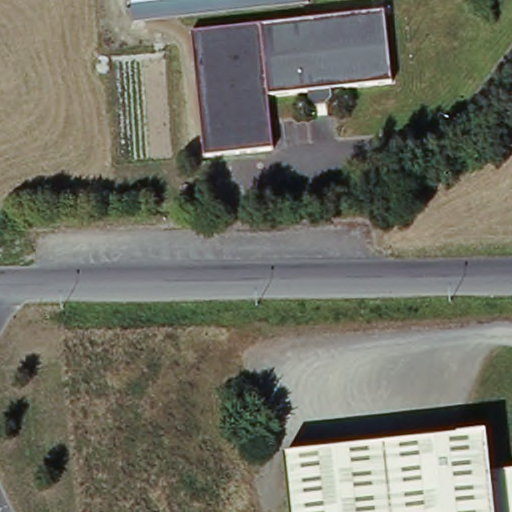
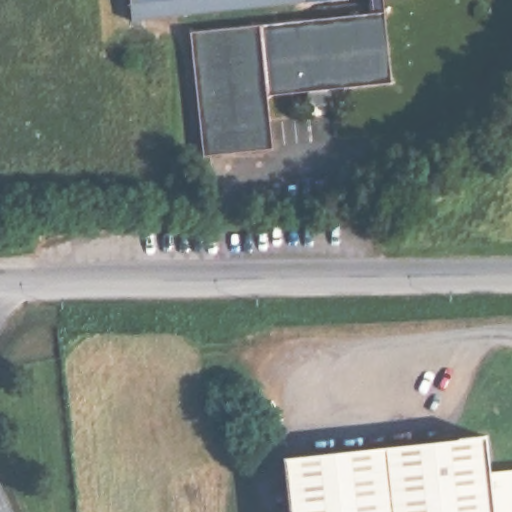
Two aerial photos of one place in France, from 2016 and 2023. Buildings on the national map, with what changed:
unchanged [(140,24),(137,0),(316,0),(316,2),(140,24)]
unchanged [(208,158),(194,34),(389,15),(396,85),(334,91),(335,99),(328,106),(319,108),(312,103),(312,94),(272,98),(275,122),(278,151),(216,157),(208,158)]
unchanged [(283,458),(458,440),(485,437),(489,475),(512,472),(512,512),(289,512),(283,458)]

